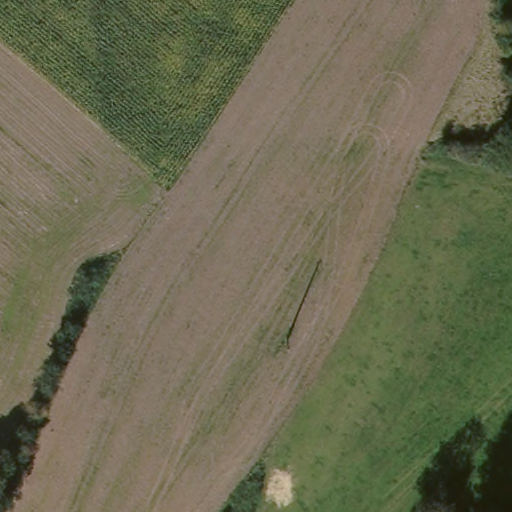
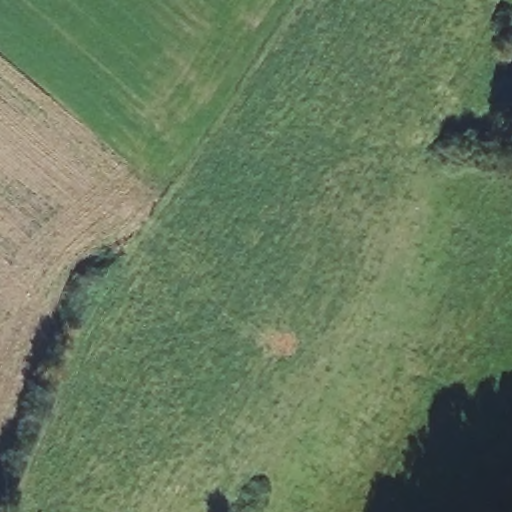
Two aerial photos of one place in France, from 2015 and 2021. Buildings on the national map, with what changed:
[]

